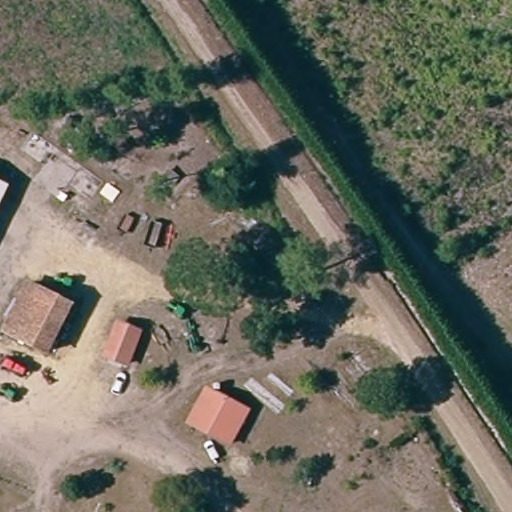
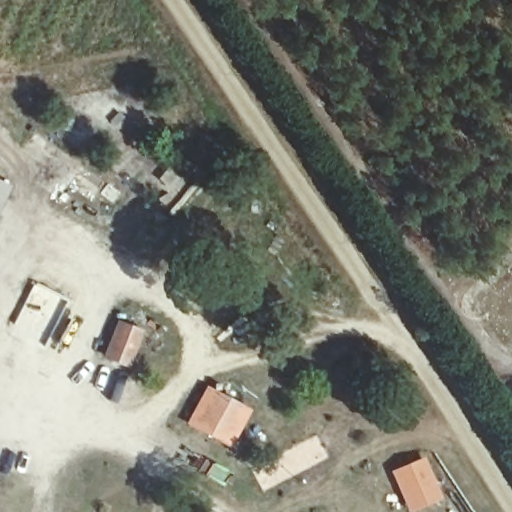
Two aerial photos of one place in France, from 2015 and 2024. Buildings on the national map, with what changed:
unchanged [(0,205),(0,181),(9,186),(0,205)]
demolished [(28,339),(4,327),(9,317),(26,281),(48,292),(28,339)]
demolished [(52,350),(28,339),(48,292),(72,305),(52,350)]
unchanged [(143,330),(128,365),(103,351),(117,319),(143,330)]
unchanged [(245,408),(227,442),(186,421),(203,387),(245,408)]
new [(412,512),(408,503),(394,472),(424,460),(437,490),(441,500),(412,512)]

